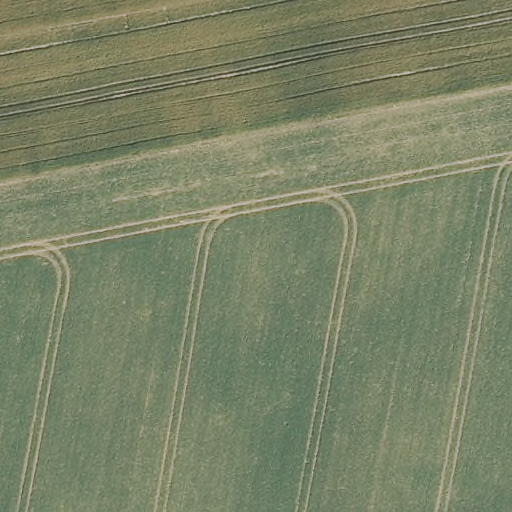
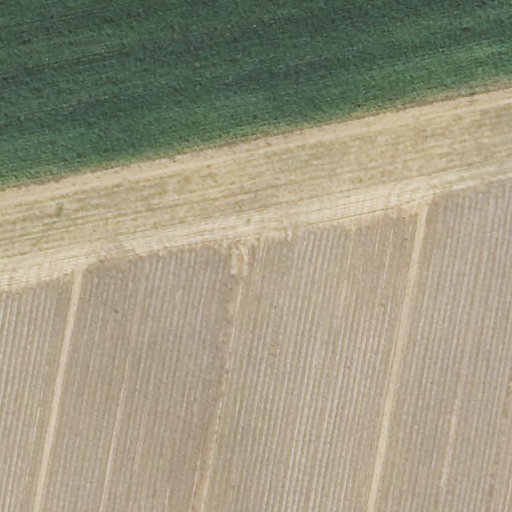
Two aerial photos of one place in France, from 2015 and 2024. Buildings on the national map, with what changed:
[]

